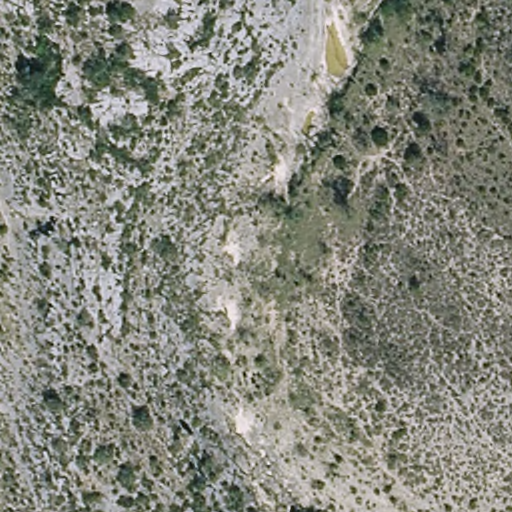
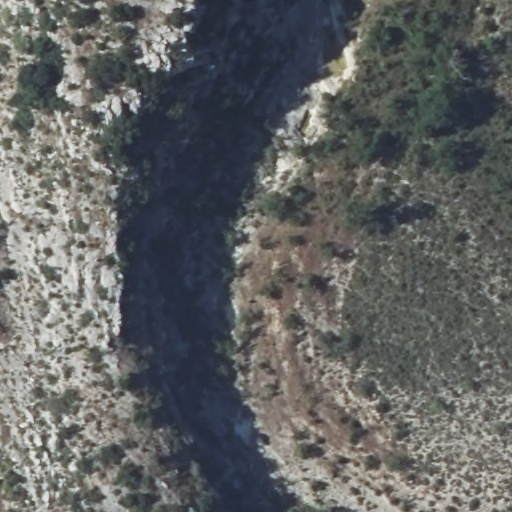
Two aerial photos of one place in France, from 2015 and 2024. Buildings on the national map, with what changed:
[]

